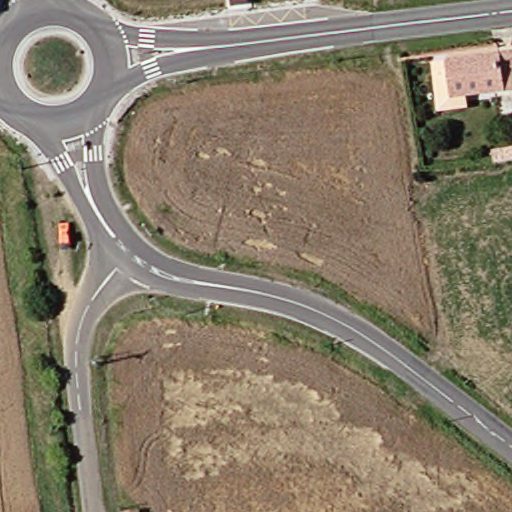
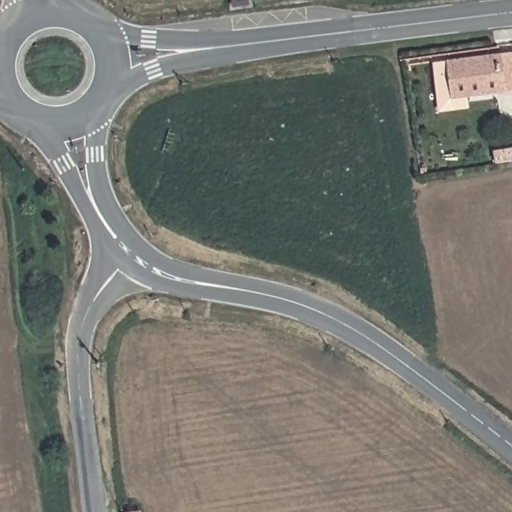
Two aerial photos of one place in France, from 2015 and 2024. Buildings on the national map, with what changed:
unchanged [(450,101),(448,67),(512,59),(512,95),(450,101)]

